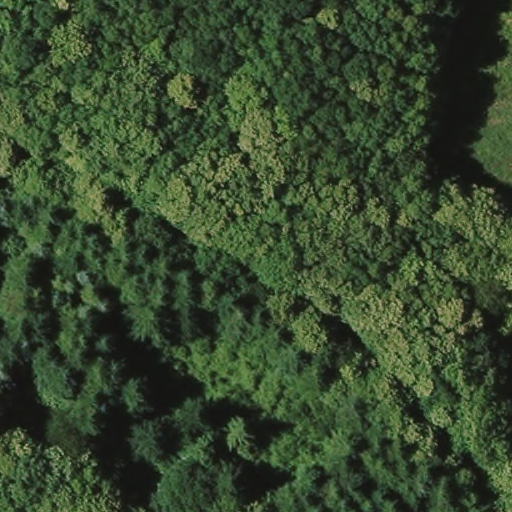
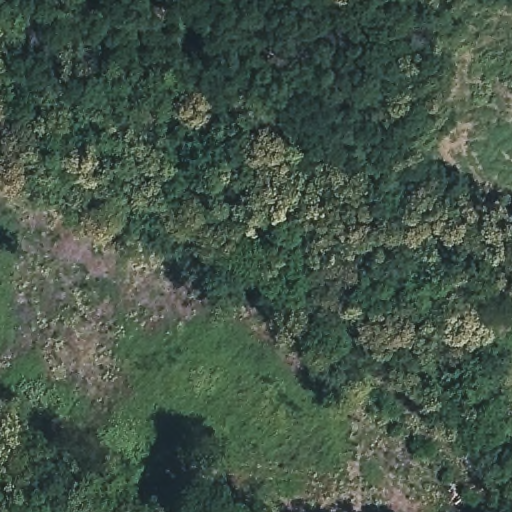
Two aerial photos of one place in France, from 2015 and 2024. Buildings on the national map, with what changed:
[]

